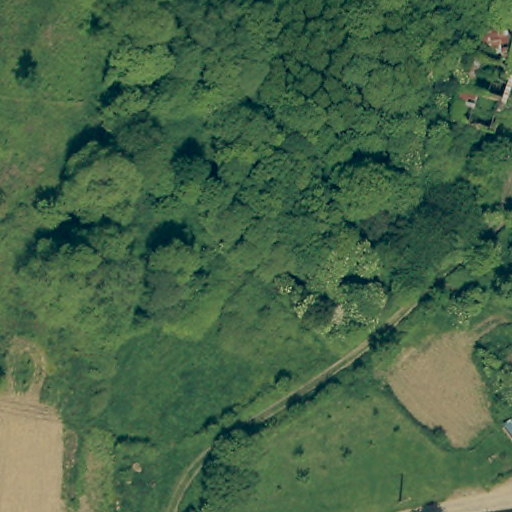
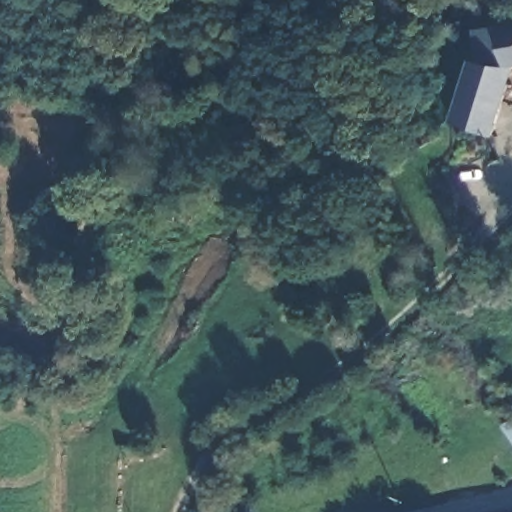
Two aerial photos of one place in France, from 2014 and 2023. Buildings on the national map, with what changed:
unchanged [(511,64),(497,65),(493,18),(512,16),(512,64),(511,64)]
new [(493,136),(451,121),(474,58),(472,29),(494,25),(497,65),(511,64),(512,64),(512,75),(493,136)]

